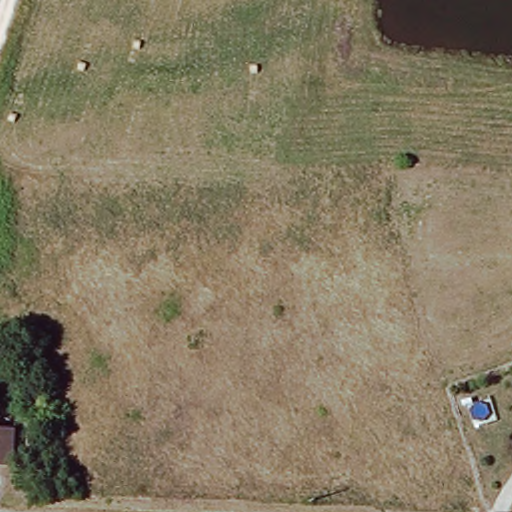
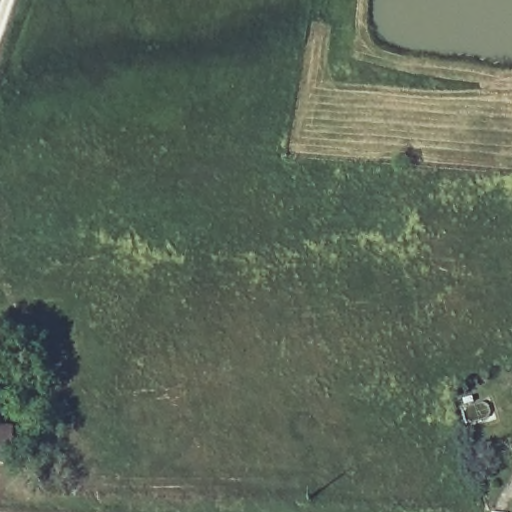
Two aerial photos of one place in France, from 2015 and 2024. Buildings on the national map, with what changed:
unchanged [(13,465),(0,465),(0,434),(13,434),(13,465)]

